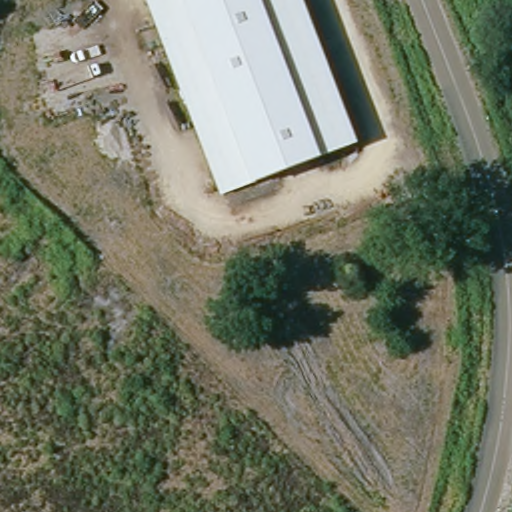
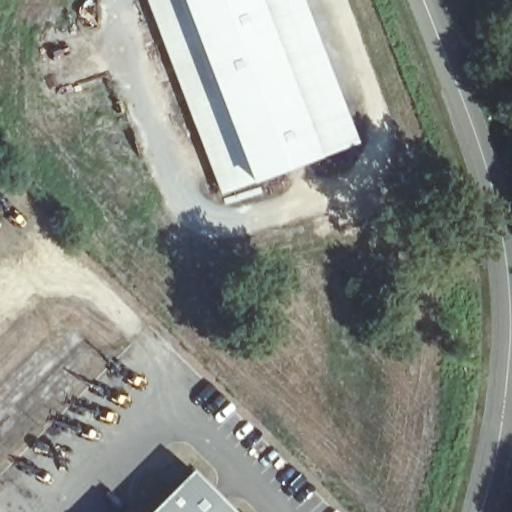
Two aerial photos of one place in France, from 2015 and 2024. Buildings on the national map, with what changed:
unchanged [(159,22),(150,0),(183,0),(187,11),(159,22)]
unchanged [(224,192),(159,22),(187,11),(183,0),(293,0),(348,143),(224,192)]
new [(231,512),(151,512),(191,472),(231,512)]

